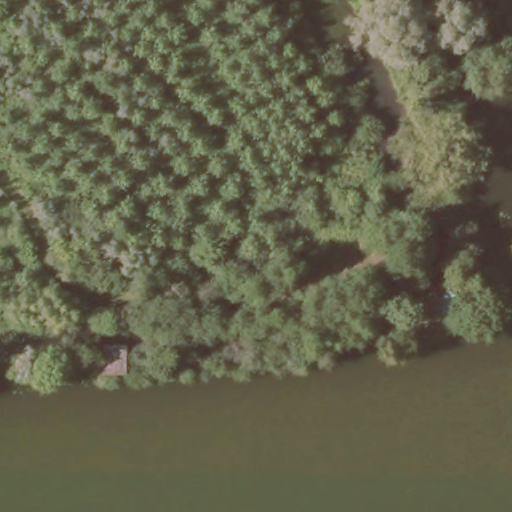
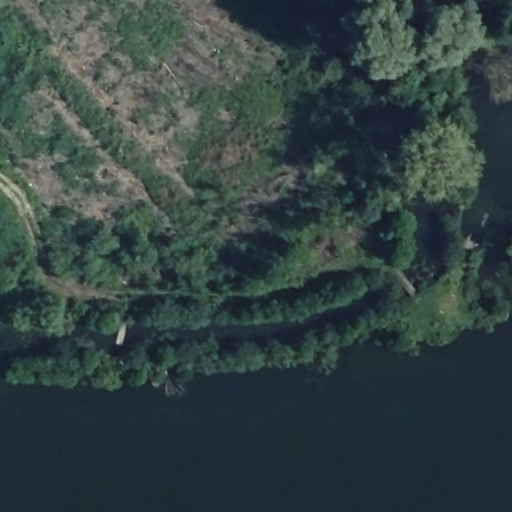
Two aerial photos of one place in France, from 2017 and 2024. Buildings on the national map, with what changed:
unchanged [(465,0),(468,0),(465,2),(465,0)]
unchanged [(415,328),(415,321),(433,318),(448,311),(450,324),(468,322),(469,332),(404,338),(403,330),(415,328)]
unchanged [(97,375),(99,347),(131,350),(125,377),(97,375)]

